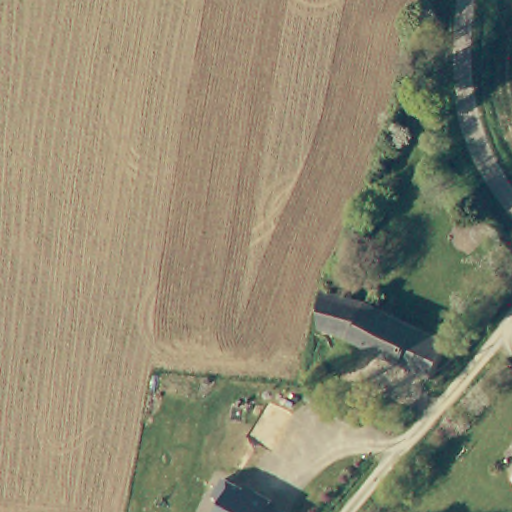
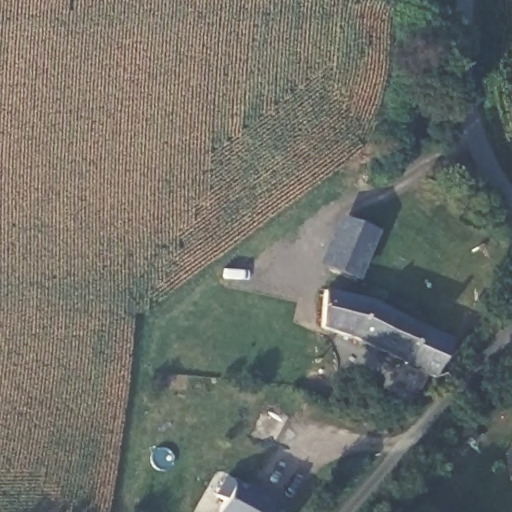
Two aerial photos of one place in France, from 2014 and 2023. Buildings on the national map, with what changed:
new [(337,216),(380,231),(359,282),(318,266),(337,216)]
unchanged [(436,377),(353,334),(317,330),(322,295),(364,298),(365,299),(452,341),(444,363),(436,377)]
unchanged [(254,487),(256,483),(273,492),(271,495),(287,504),(283,512),(216,512),(214,511),(223,493),(215,489),(224,471),(254,487)]

